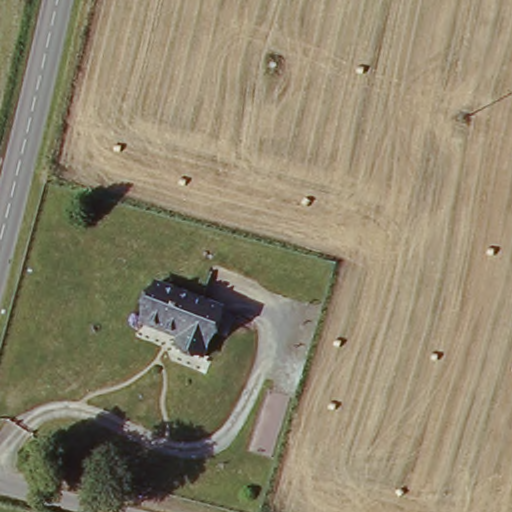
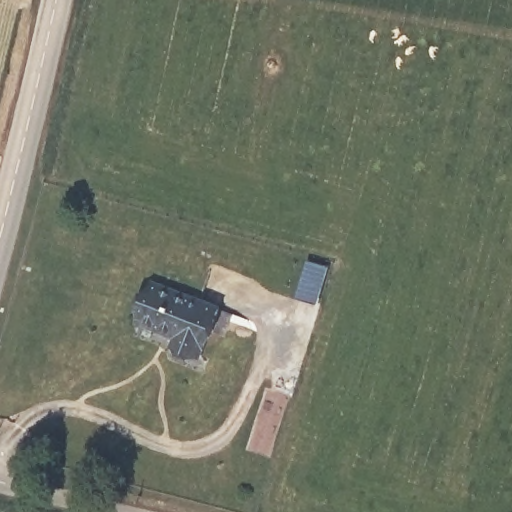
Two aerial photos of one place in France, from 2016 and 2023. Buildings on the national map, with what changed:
unchanged [(219,314),(203,361),(176,352),(179,340),(139,326),(153,291),(219,314)]

